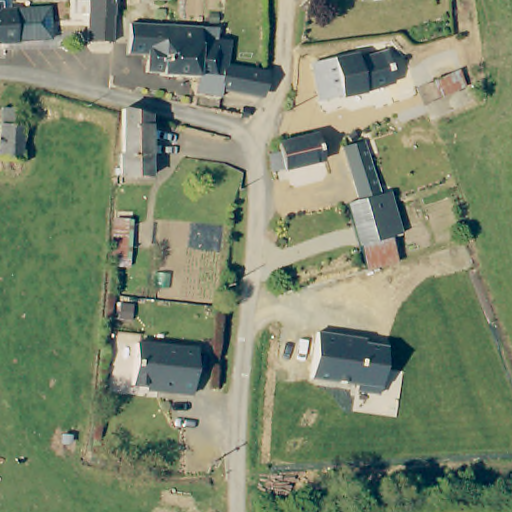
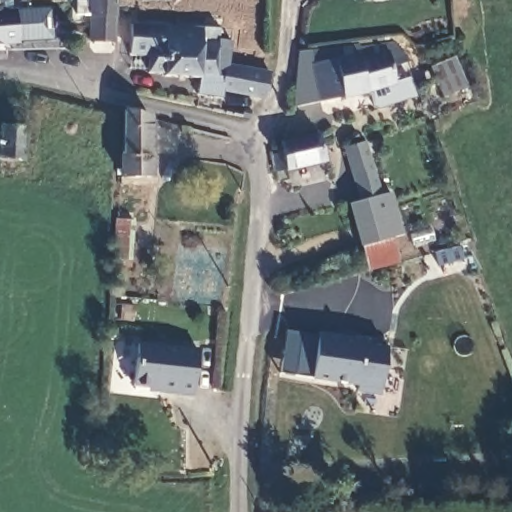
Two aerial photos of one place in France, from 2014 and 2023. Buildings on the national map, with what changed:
unchanged [(88,42),(89,14),(74,14),(74,0),(115,0),(113,42),(88,42)]
unchanged [(154,1),(154,0),(169,0),(169,1),(154,1)]
unchanged [(12,12),(28,11),(29,49),(14,50),(14,44),(0,45),(0,6),(11,6),(12,12)]
unchanged [(219,65),(215,91),(214,98),(195,97),(195,77),(159,76),(158,72),(141,71),(144,35),(161,35),(161,25),(213,27),(213,37),(228,37),(227,66),(219,65)]
unchanged [(396,83),(364,93),(322,101),(315,65),(361,52),(362,59),(390,51),(396,83)]
unchanged [(263,71),(261,81),(259,90),(255,99),(215,91),(219,65),(227,66),(263,71)]
unchanged [(441,96),(438,91),(433,80),(457,69),(464,85),(441,96)]
unchanged [(3,172),(1,161),(0,161),(0,112),(0,107),(24,110),(24,126),(21,162),(19,177),(4,176),(3,172)]
unchanged [(148,116),(149,177),(119,177),(119,152),(123,152),(123,109),(148,116)]
unchanged [(324,159),(278,170),(277,145),(318,134),(324,159)]
unchanged [(380,193),(376,194),(355,200),(342,150),(366,141),(380,193)]
unchanged [(363,270),(357,245),(347,203),(355,200),(376,194),(388,236),(394,261),(363,270)]
unchanged [(365,339),(364,344),(384,347),(379,389),(378,396),(354,393),(354,386),(308,378),(316,332),(365,339)]
unchanged [(195,351),(189,396),(155,391),(155,388),(129,385),(135,343),(195,351)]

